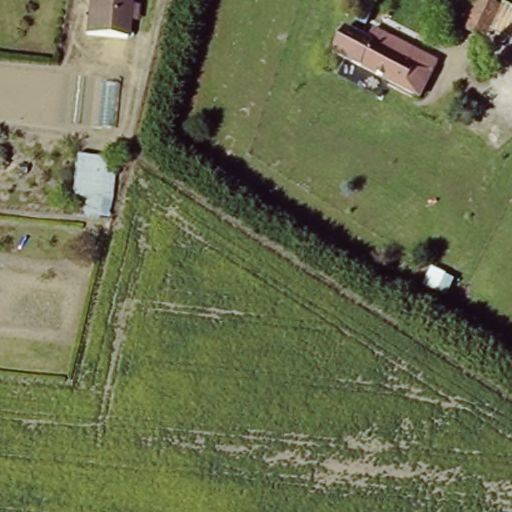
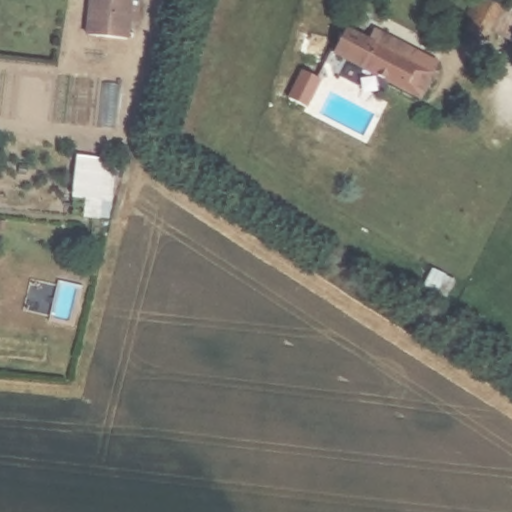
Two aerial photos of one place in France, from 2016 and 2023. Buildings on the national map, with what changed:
unchanged [(126,0),(124,33),(85,29),(87,0),(126,0)]
unchanged [(486,42),(471,34),(477,25),(485,10),(490,1),(505,10),(491,34),(487,41),(486,42)]
unchanged [(359,13),(369,16),(366,24),(355,20),(359,13)]
unchanged [(361,62),(379,28),(419,49),(414,59),(431,68),(418,92),(361,62)]
unchanged [(95,153),(118,160),(107,198),(83,191),(95,153)]

